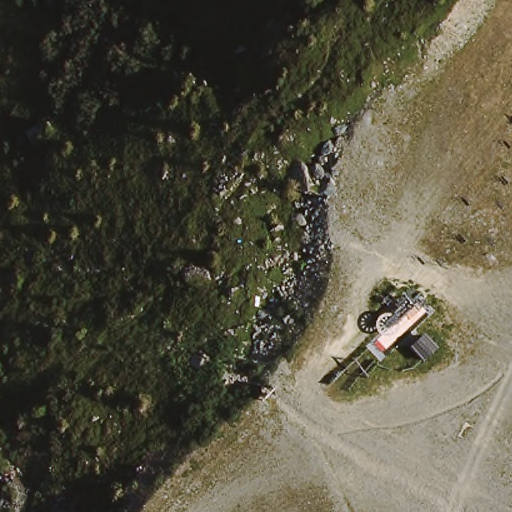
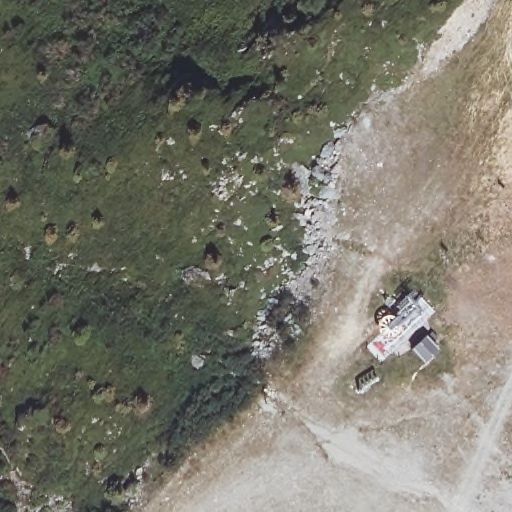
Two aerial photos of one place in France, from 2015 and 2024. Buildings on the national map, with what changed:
unchanged [(408,332),(380,366),(370,370),(363,367),(363,354),(373,340),(392,318),(408,332)]

